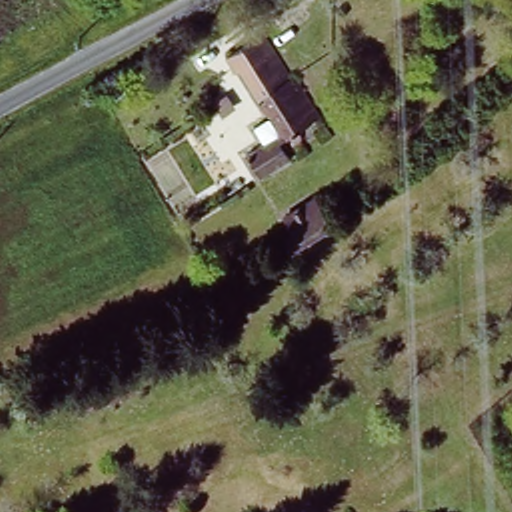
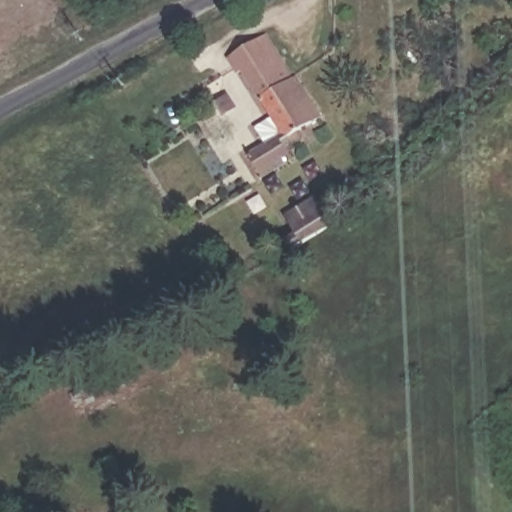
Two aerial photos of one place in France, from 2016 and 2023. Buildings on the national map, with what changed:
unchanged [(208,55),(201,45),(243,15),(244,17),(208,55)]
unchanged [(276,133),(221,55),(245,38),(248,42),(266,67),(275,61),(310,111),(291,125),(294,130),(285,137),(280,130),(276,133)]
unchanged [(241,156),(272,135),(280,149),(249,169),(241,156)]
unchanged [(306,242),(293,223),(324,202),(336,220),(306,242)]

